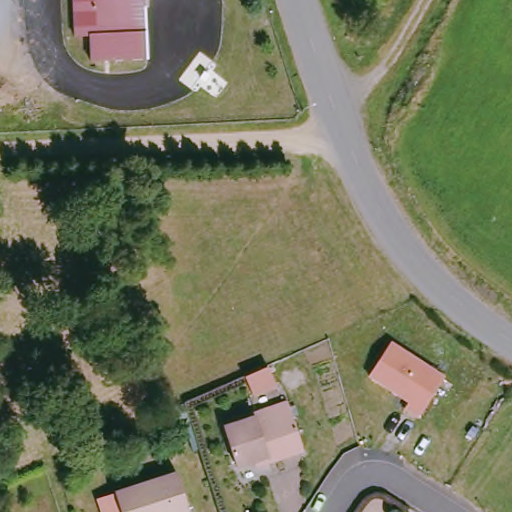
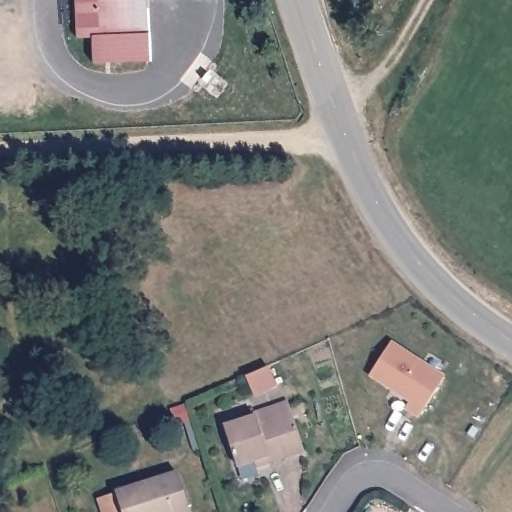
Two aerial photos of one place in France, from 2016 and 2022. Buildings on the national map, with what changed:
unchanged [(149,0),(152,61),(95,62),(94,42),(78,42),(77,0),(149,0)]
unchanged [(393,342),(446,377),(419,420),(405,410),(409,402),(371,378),(393,342)]
unchanged [(279,386),(257,396),(248,380),(270,370),(279,386)]
unchanged [(258,458),(238,464),(225,426),(256,416),(254,410),(289,399),(294,413),(309,452),(273,463),(261,467),(258,458)]
unchanged [(117,497),(116,495),(181,475),(193,512),(103,512),(100,502),(117,497)]

